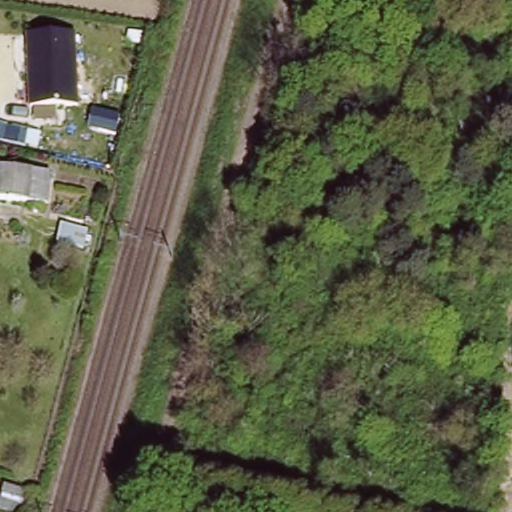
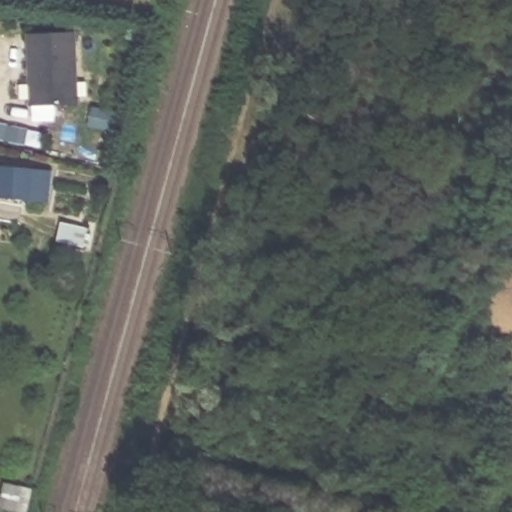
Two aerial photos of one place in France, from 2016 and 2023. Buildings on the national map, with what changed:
unchanged [(73,31),(78,103),(56,104),(57,117),(31,119),(26,35),(73,31)]
unchanged [(52,172),(51,202),(1,199),(3,169),(52,172)]
unchanged [(28,512),(20,512),(1,508),(6,486),(32,492),(28,512)]

